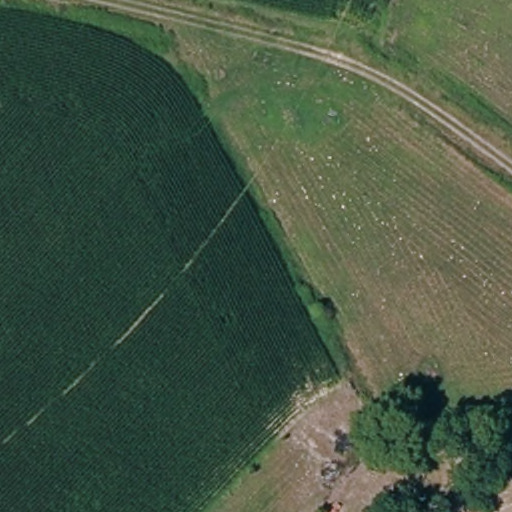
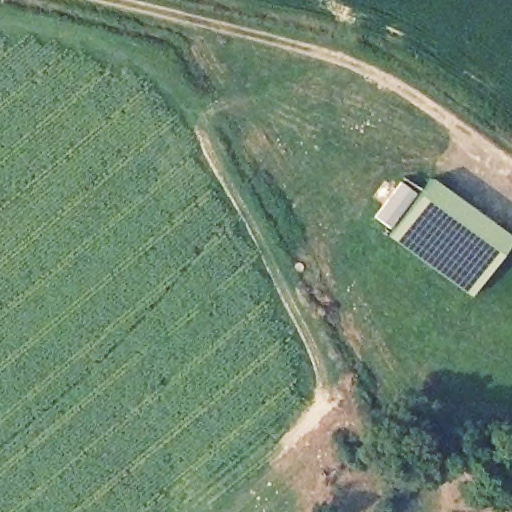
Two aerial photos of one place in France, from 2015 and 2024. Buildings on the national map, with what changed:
new [(512,238),(471,297),(387,237),(431,178),(512,238)]

